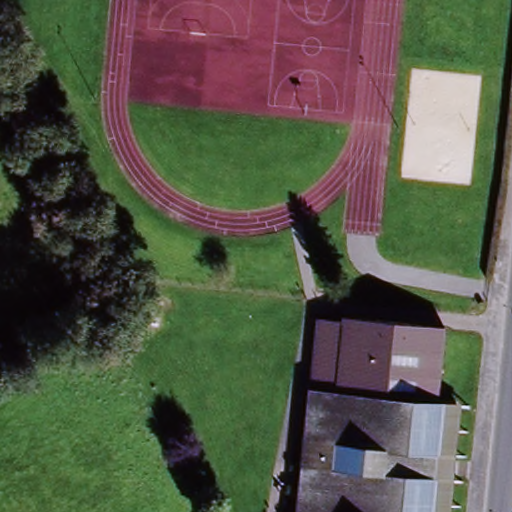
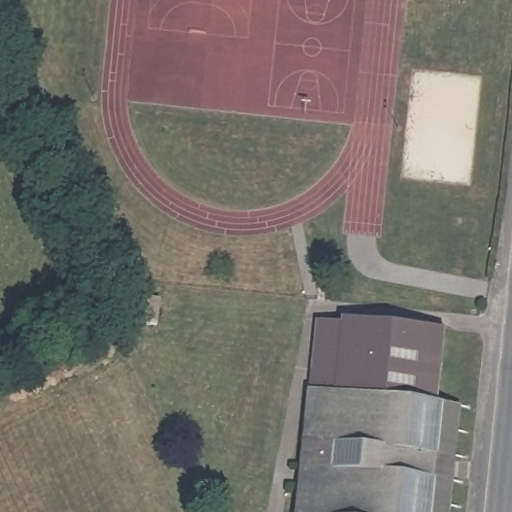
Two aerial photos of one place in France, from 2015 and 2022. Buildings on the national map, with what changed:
unchanged [(133,325),(137,299),(158,302),(155,328),(133,325)]
unchanged [(450,403),(457,403),(446,512),(295,512),(308,388),(310,388),(317,317),(342,319),(342,315),(445,326),(440,377),(453,378),(450,403)]

